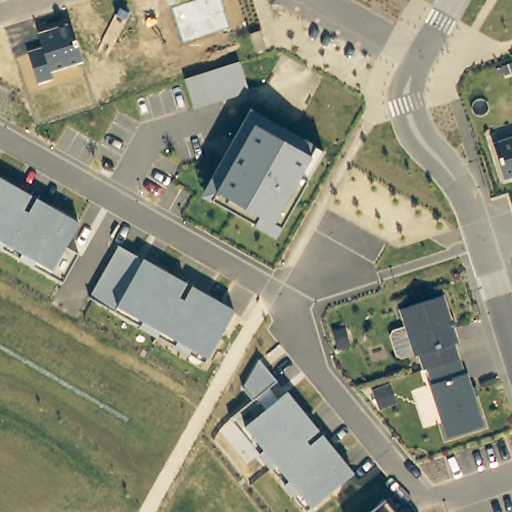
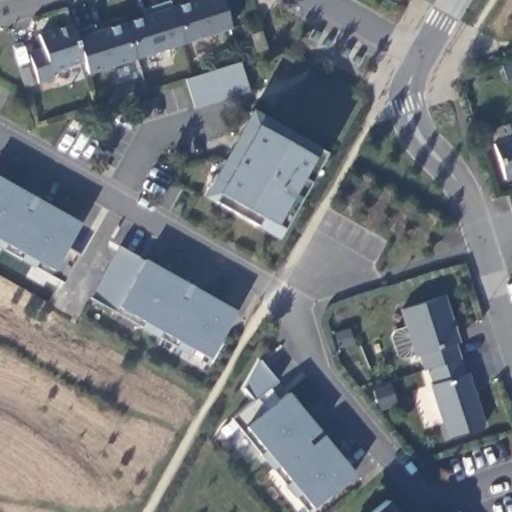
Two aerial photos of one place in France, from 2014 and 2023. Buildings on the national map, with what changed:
new [(92,25),(95,31),(143,15),(141,10),(169,0),(171,7),(192,0),(222,0),(230,28),(90,75),(85,62),(74,32),(92,25)]
unchanged [(55,80),(38,85),(27,53),(42,49),(37,33),(70,21),(85,62),(52,72),(55,80)]
unchanged [(194,107),(185,80),(239,62),(248,90),(194,107)]
unchanged [(254,225),(210,200),(202,195),(207,186),(222,158),(233,140),(249,111),(250,110),(251,110),(315,146),(324,151),(307,180),(280,227),(275,236),(254,225)]
unchanged [(504,177),(493,144),(512,138),(512,177),(504,180),(504,177)]
unchanged [(67,245),(80,253),(63,284),(0,247),(0,178),(79,223),(67,245)]
unchanged [(143,260),(235,311),(209,360),(117,309),(92,296),(120,247),(143,260)]
unchanged [(429,368),(428,369),(427,370),(425,370),(420,355),(416,356),(415,353),(402,358),(398,355),(391,336),(394,331),(407,327),(401,309),(443,296),(458,342),(454,344),(459,359),(429,368)]
unchanged [(353,473),(313,507),(307,511),(231,418),(254,398),(243,386),(260,357),(277,381),(267,388),(277,399),(288,391),(353,473)]
unchanged [(429,368),(459,359),(460,359),(465,374),(467,373),(484,426),(448,437),(431,385),(434,384),(428,369),(429,368)]
unchanged [(394,512),(374,512),(385,502),(394,512)]

